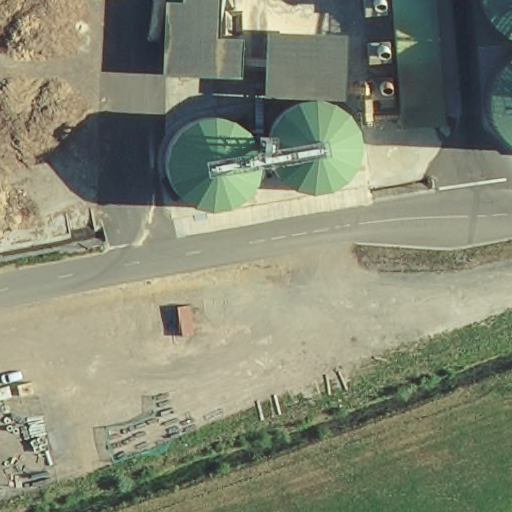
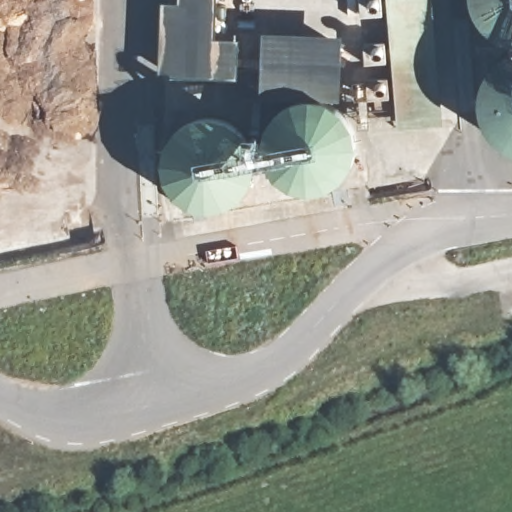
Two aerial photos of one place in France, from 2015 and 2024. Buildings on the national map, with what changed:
unchanged [(161,0),(216,0),(214,36),(240,36),(240,78),(162,73),(161,0)]
unchanged [(391,0),(432,0),(442,123),(400,128),(391,0)]
unchanged [(262,97),(265,30),(345,34),(343,98),(262,97)]

